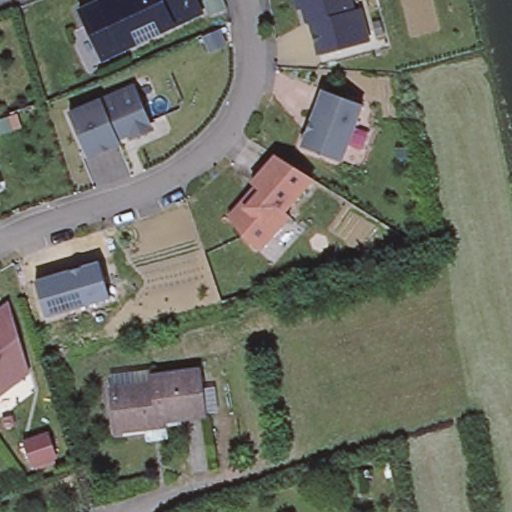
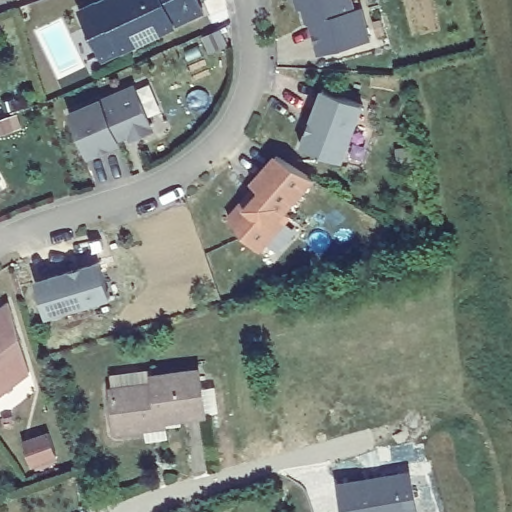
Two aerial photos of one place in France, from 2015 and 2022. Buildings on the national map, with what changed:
unchanged [(96,49),(77,9),(95,0),(196,0),(201,10),(120,48),(100,57),(96,49)]
unchanged [(297,0),(352,0),(355,12),(362,10),(370,41),(320,55),(312,24),(308,21),(305,8),(300,9),(297,0)]
unchanged [(90,148),(71,105),(136,77),(145,97),(152,116),(150,122),(137,128),(122,135),(90,148)]
unchanged [(364,100),(343,157),(303,142),(324,85),(364,100)]
unchanged [(314,180),(286,212),(291,216),(261,251),(244,235),(231,218),(247,205),(249,207),(262,192),(254,185),(278,156),(314,180)]
unchanged [(0,179),(0,169),(2,173),(0,179)]
unchanged [(112,298),(47,317),(37,282),(101,263),(112,298)]
unchanged [(31,372),(0,395),(0,311),(10,303),(31,372)]
unchanged [(150,442),(147,423),(120,427),(114,386),(155,380),(155,373),(200,367),(205,406),(206,410),(187,413),(167,416),(170,440),(150,442)]
unchanged [(32,465),(25,442),(50,434),(58,456),(32,465)]
new [(413,471),(418,512),(341,512),(337,482),(413,471)]

